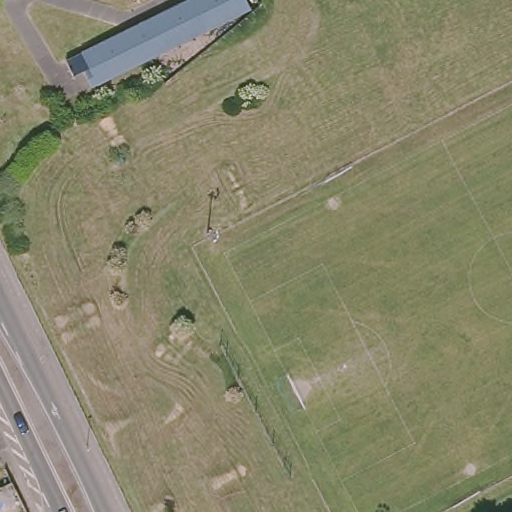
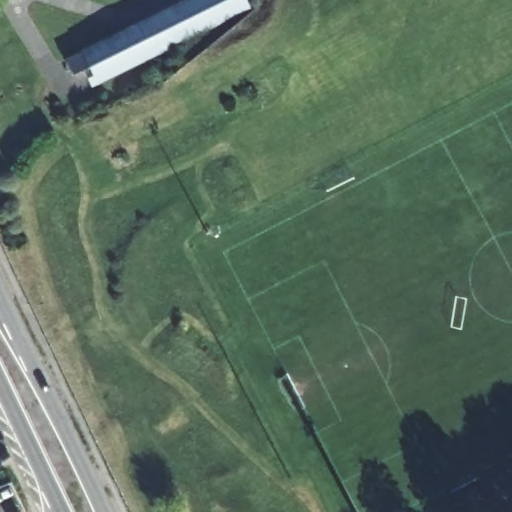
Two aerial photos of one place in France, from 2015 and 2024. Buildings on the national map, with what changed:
unchanged [(189,0),(244,0),(248,9),(95,85),(80,52),(189,0)]
unchanged [(17,485),(18,486),(7,490),(0,493),(0,478),(12,473),(17,485)]

